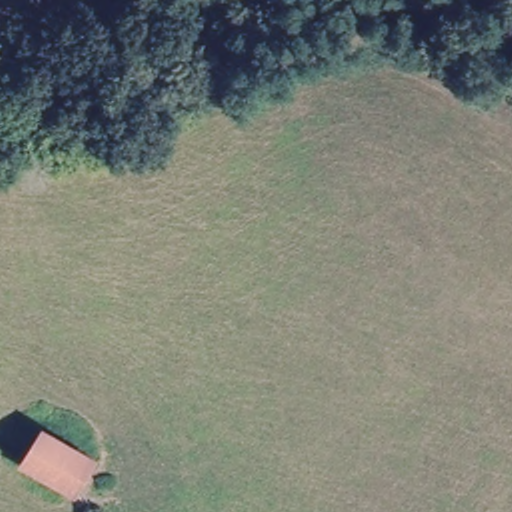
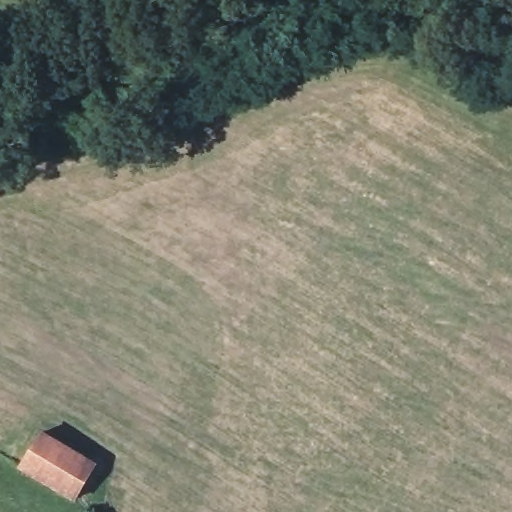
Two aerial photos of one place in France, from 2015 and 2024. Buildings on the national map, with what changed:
unchanged [(75,497),(21,465),(41,431),(95,465),(75,497)]

